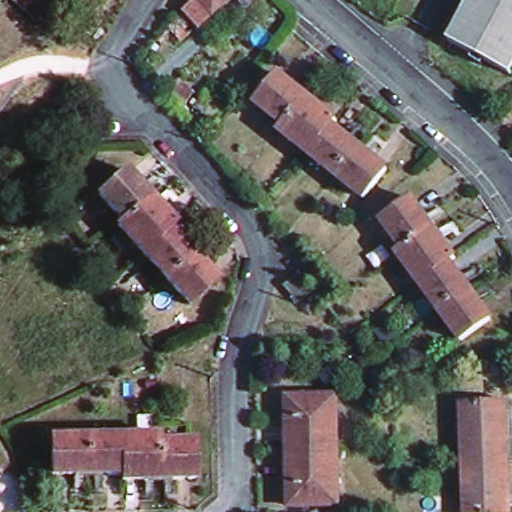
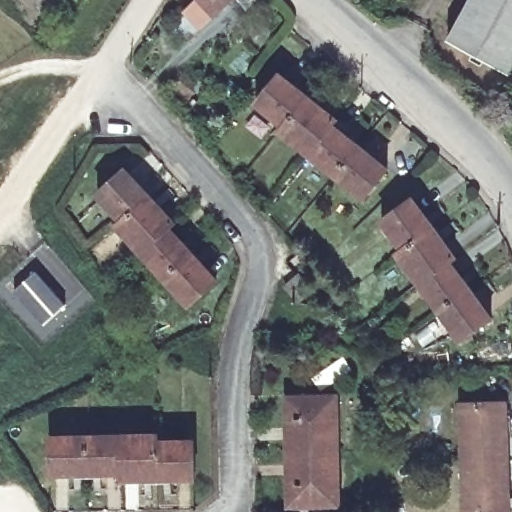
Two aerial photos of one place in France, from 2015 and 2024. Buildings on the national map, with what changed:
unchanged [(189,12),(202,0),(240,0),(208,30),(189,12)]
unchanged [(452,42),(475,0),(512,0),(512,71),(510,75),(452,42)]
unchanged [(278,74),(335,118),(330,124),(385,169),(361,198),(277,131),(282,124),(255,103),(278,74)]
unchanged [(196,90),(193,95),(222,112),(213,125),(164,91),(175,76),(196,90)]
unchanged [(130,172),(177,224),(171,229),(219,283),(191,308),(120,229),(125,224),(100,197),(130,172)]
unchanged [(411,205),(454,262),(447,267),(489,322),(458,345),(395,261),(402,256),(380,228),(411,205)]
unchanged [(302,272),(314,290),(300,300),(287,283),(302,272)]
new [(33,273),(65,308),(42,330),(10,295),(33,273)]
unchanged [(335,403),(337,512),(287,512),(286,405),(335,403)]
unchanged [(459,405),(502,404),(505,463),(462,465),(459,405)]
unchanged [(154,440),(154,446),(191,445),(192,483),(120,484),(120,476),(49,477),(50,440),(154,440)]
unchanged [(507,512),(465,512),(462,465),(505,463),(507,512)]

